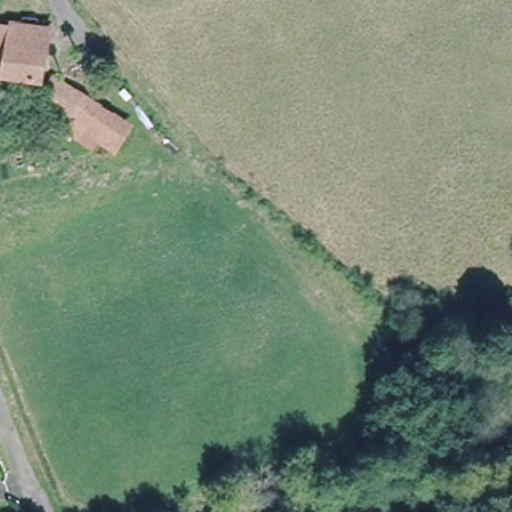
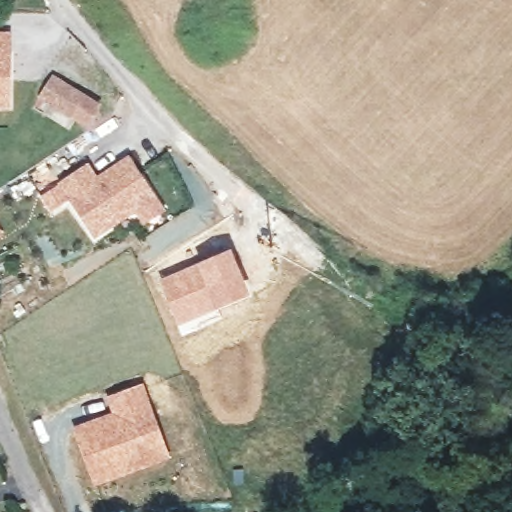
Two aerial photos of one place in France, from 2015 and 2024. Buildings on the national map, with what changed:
demolished [(35,25),(26,80),(0,75),(0,22),(0,19),(35,25)]
new [(14,30),(12,110),(0,110),(0,30),(14,30)]
new [(104,104),(90,127),(39,99),(55,73),(104,104)]
new [(99,175),(130,155),(166,209),(145,224),(136,212),(95,239),(58,182),(90,162),(99,175)]
new [(231,248),(251,295),(178,326),(159,280),(231,248)]
new [(110,412),(104,396),(143,383),(170,458),(94,485),(73,426),(110,412)]

